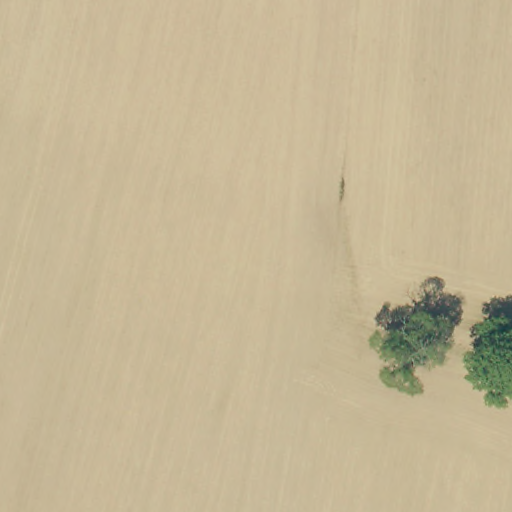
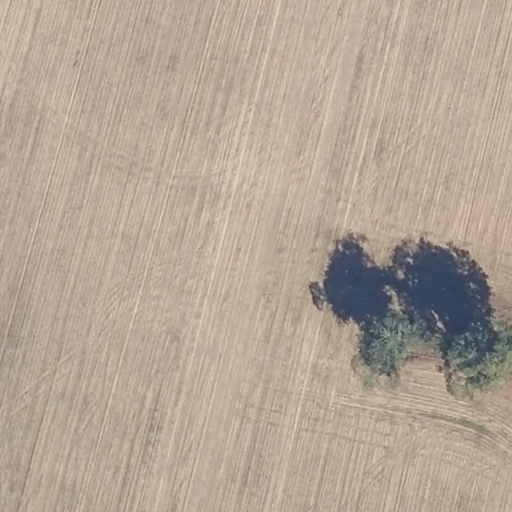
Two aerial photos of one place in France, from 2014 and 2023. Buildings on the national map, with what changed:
[]

